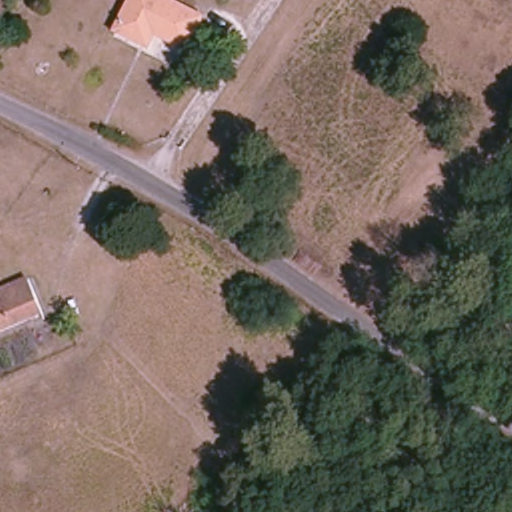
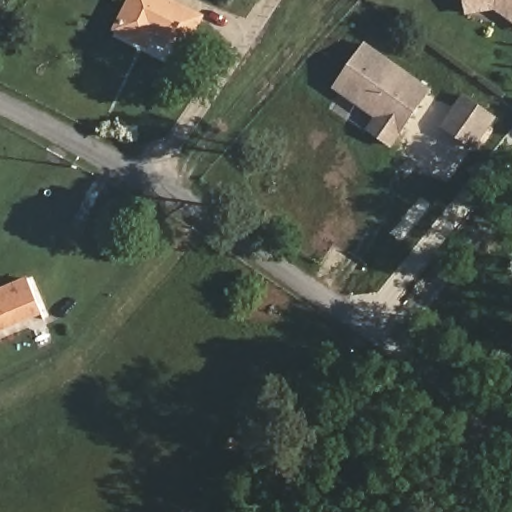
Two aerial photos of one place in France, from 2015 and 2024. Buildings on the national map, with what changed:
unchanged [(134,41),(111,28),(128,0),(167,0),(204,20),(187,52),(154,34),(145,46),(134,41)]
new [(494,10),(466,15),(463,0),(512,0),(512,22),(494,10)]
new [(391,148),(364,129),(373,118),(332,89),(363,40),(434,89),(391,148)]
new [(474,151),(439,125),(464,93),(498,117),(474,151)]
unchanged [(0,293),(3,292),(25,283),(41,317),(0,334),(0,293)]

